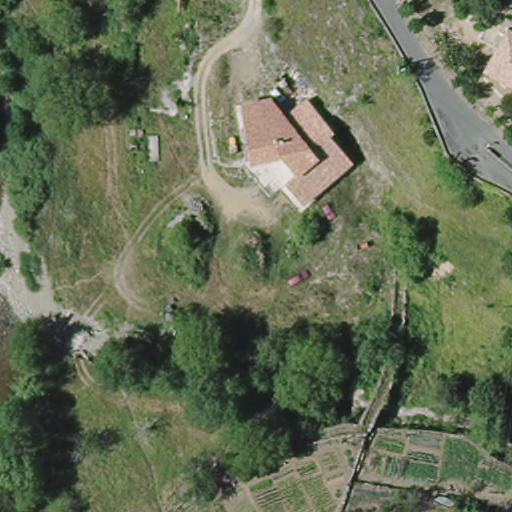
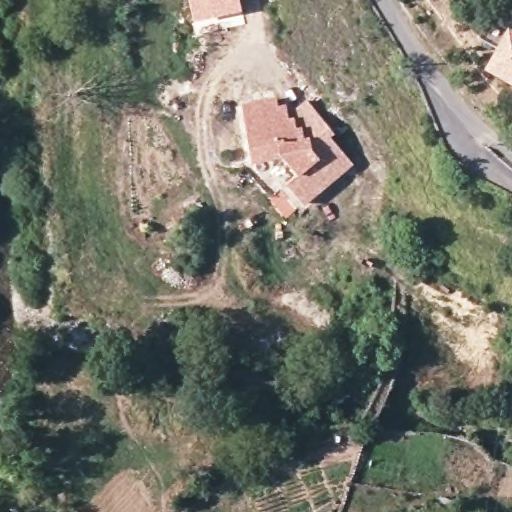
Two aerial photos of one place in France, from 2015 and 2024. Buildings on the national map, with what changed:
new [(193,21),(190,0),(240,0),(243,12),(193,21)]
unchanged [(506,29),(512,33),(512,84),(482,68),(506,29)]
unchanged [(241,104),(271,98),(285,115),(306,99),(336,134),(332,139),(353,165),(302,204),(284,182),(295,174),(281,155),(251,164),(241,104)]

